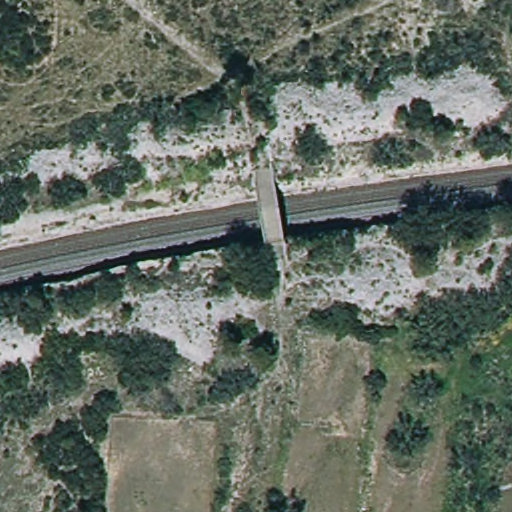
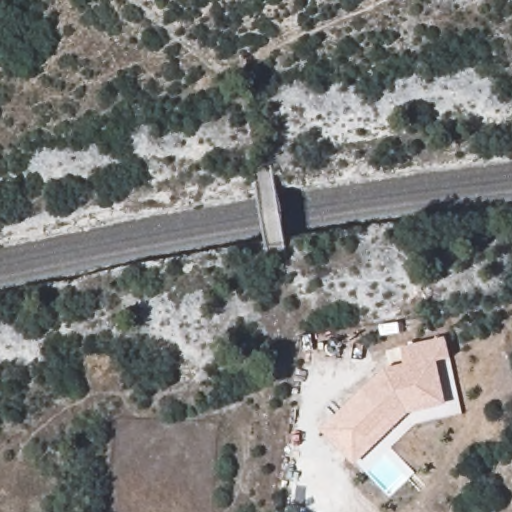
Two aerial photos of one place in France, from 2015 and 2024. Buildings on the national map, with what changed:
new [(384,366),(404,362),(398,342),(442,330),(448,351),(432,356),(443,396),(407,405),(387,427),(371,412),(355,428),(340,413),(384,366)]
new [(340,413),(355,428),(371,412),(387,427),(357,457),(326,428),(340,413)]

